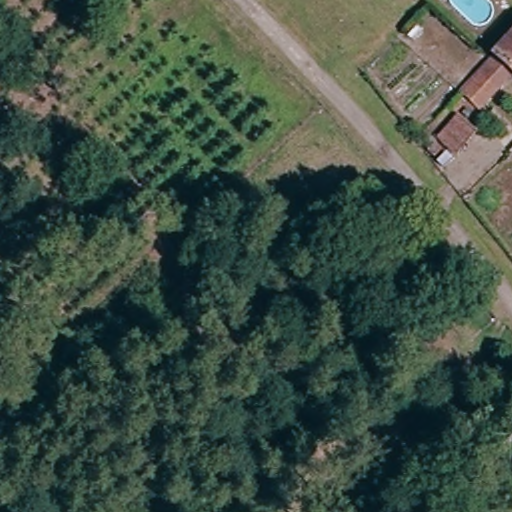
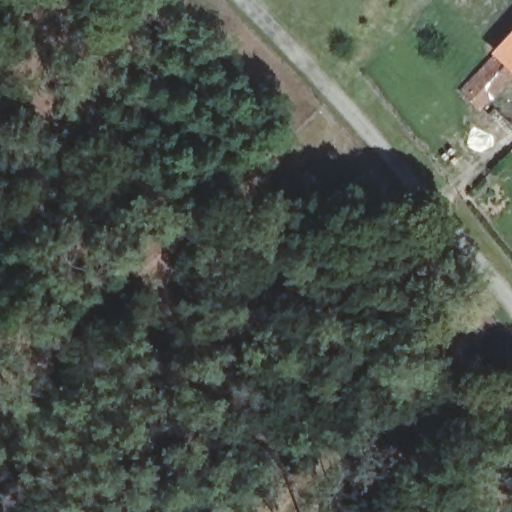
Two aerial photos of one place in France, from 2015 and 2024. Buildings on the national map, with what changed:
unchanged [(505,46),(502,43),(512,30),(512,74),(505,81),(480,109),(463,91),(491,61),(505,46)]
unchanged [(512,149),(512,158),(507,154),(512,149)]

